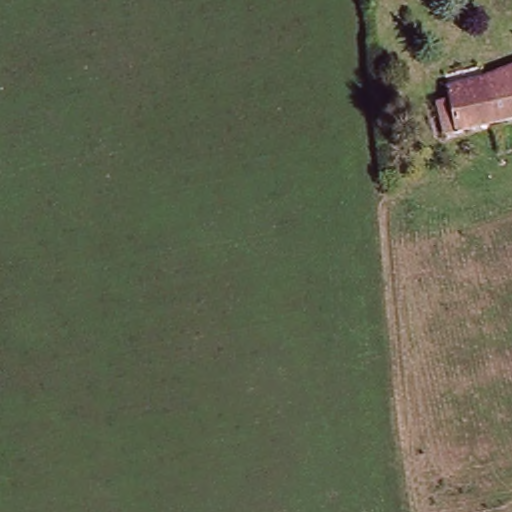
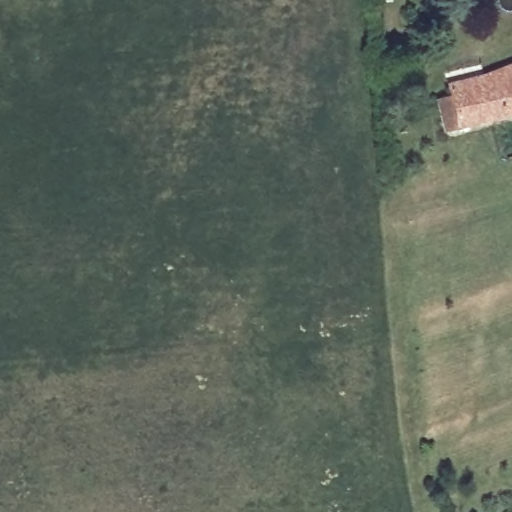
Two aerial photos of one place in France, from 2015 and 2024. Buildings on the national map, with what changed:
unchanged [(463,91),(480,88),(501,81),(512,79),(512,128),(459,138),(453,107),(465,104),(463,91)]

